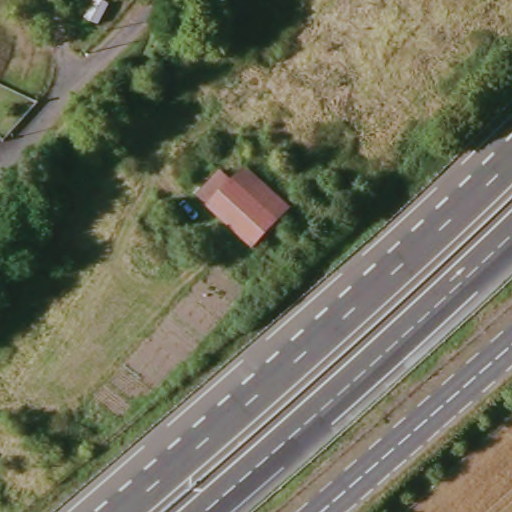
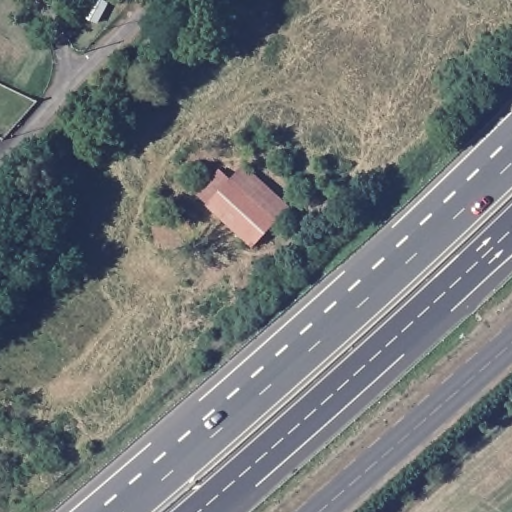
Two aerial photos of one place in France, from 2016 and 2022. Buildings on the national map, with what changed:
unchanged [(208,208),(232,181),(247,195),(262,178),(291,204),(252,249),(208,208)]

